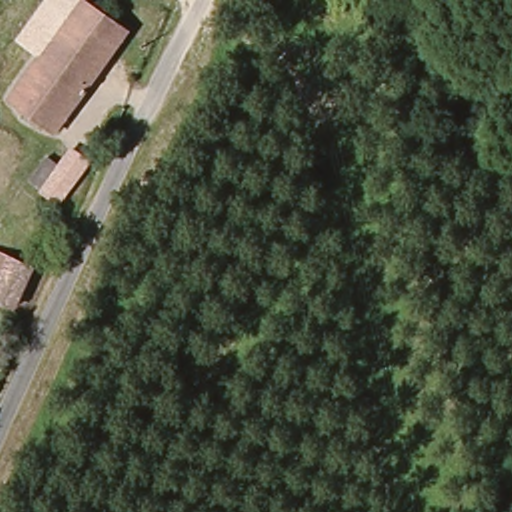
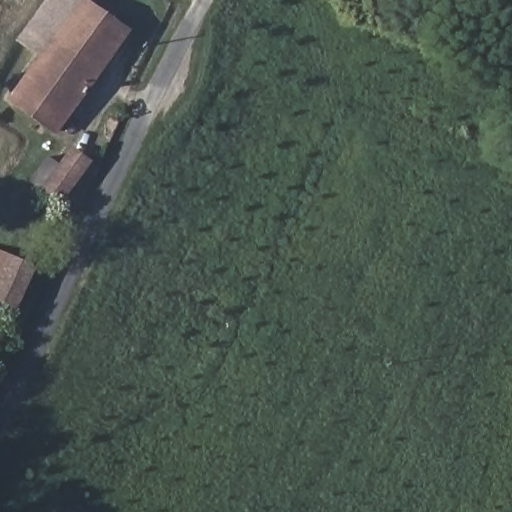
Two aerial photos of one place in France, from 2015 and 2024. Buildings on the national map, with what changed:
unchanged [(55,135),(8,101),(39,56),(19,42),(47,0),(77,0),(126,36),(55,135)]
unchanged [(40,192),(44,186),(33,177),(42,166),(51,172),(70,155),(88,170),(59,207),(40,192)]
unchanged [(0,254),(34,270),(15,308),(0,300),(0,254)]

